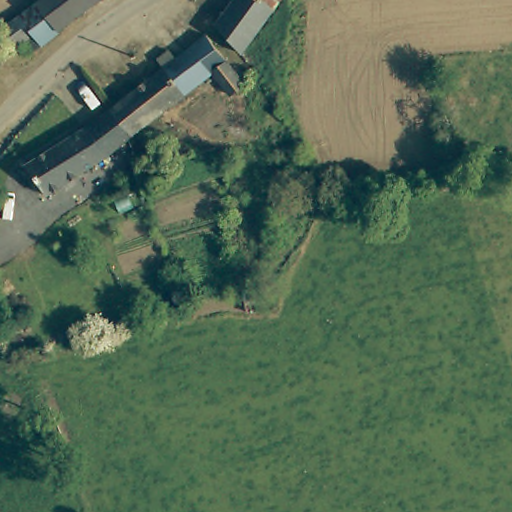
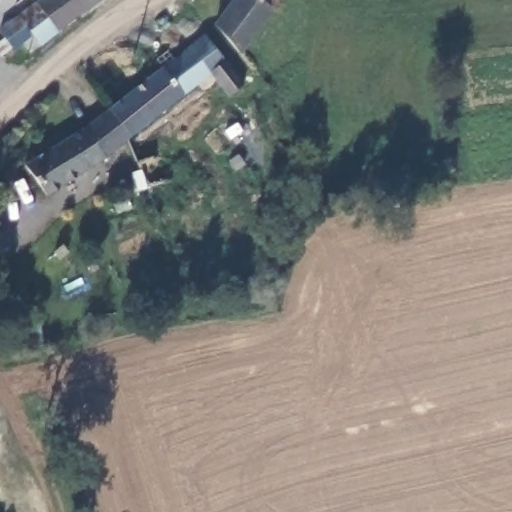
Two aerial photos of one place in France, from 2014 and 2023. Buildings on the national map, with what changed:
unchanged [(0,23),(20,9),(33,0),(101,0),(82,11),(60,25),(40,38),(29,45),(22,36),(0,51),(0,23)]
unchanged [(243,0),(292,0),(296,5),(249,48),(222,19),(243,0)]
unchanged [(251,82),(237,93),(220,71),(135,138),(118,114),(115,110),(166,68),(160,60),(173,49),(181,57),(211,32),(251,82)]
unchanged [(78,181),(61,150),(118,114),(135,138),(78,181)]
unchanged [(49,197),(32,168),(61,150),(78,181),(49,197)]

